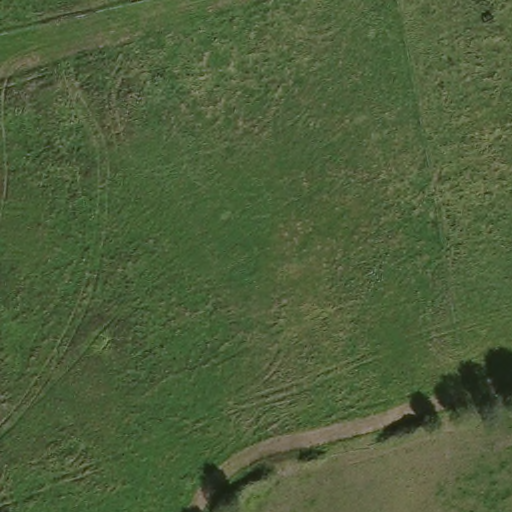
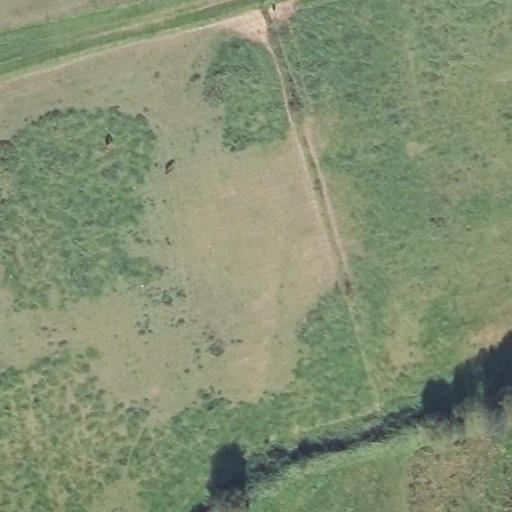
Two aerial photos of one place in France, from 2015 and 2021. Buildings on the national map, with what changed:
[]

